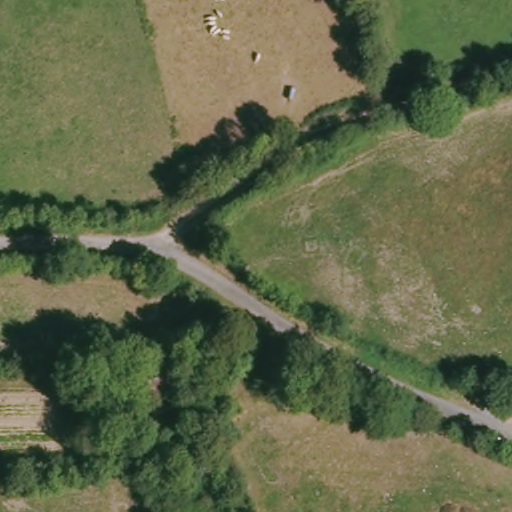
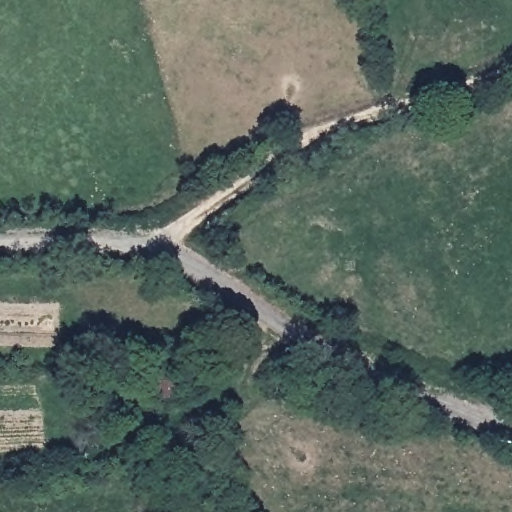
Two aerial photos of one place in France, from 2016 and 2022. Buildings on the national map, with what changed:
unchanged [(136,401),(132,367),(170,366),(172,399),(136,401)]

